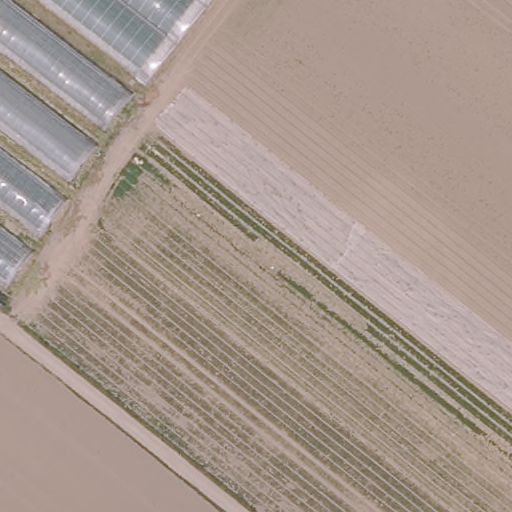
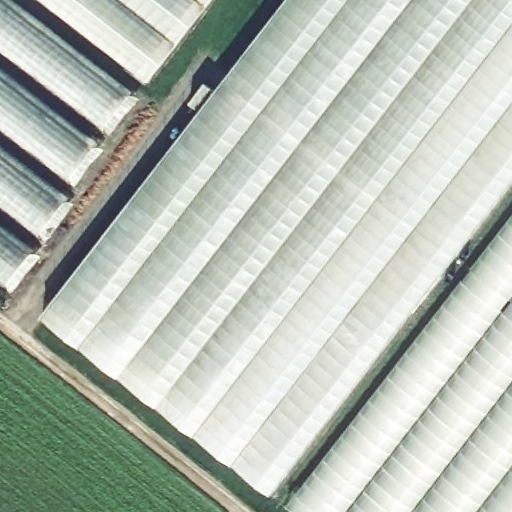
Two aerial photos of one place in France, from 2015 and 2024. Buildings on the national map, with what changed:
unchanged [(13,0),(139,96),(11,291),(0,282),(0,0),(13,0)]
unchanged [(38,0),(211,0),(148,84),(38,0)]
new [(42,318),(288,0),(512,0),(512,186),(273,495),(42,318)]
new [(286,505),(512,212),(512,512),(296,512),(286,505)]

